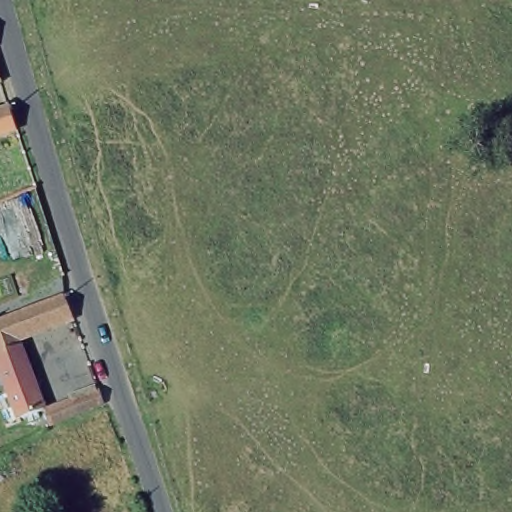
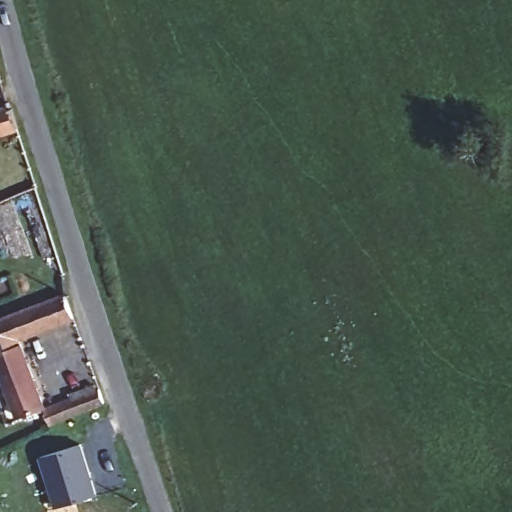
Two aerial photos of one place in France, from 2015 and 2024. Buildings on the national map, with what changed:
unchanged [(0,105),(5,103),(12,126),(0,129),(0,105)]
new [(0,238),(0,224),(6,235),(0,238)]
unchanged [(20,338),(0,345),(0,313),(62,292),(69,314),(18,332),(20,338)]
unchanged [(7,389),(2,390),(0,386),(0,380),(5,378),(0,366),(0,345),(20,338),(42,406),(16,416),(13,406),(7,389)]
unchanged [(99,404),(47,421),(42,406),(94,389),(99,404)]
new [(98,495),(55,508),(39,457),(82,444),(98,495)]

